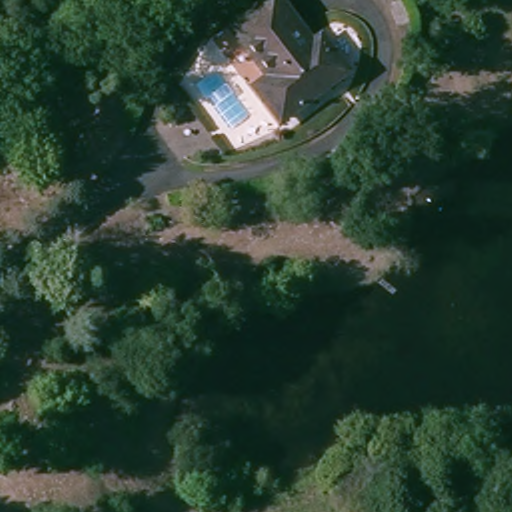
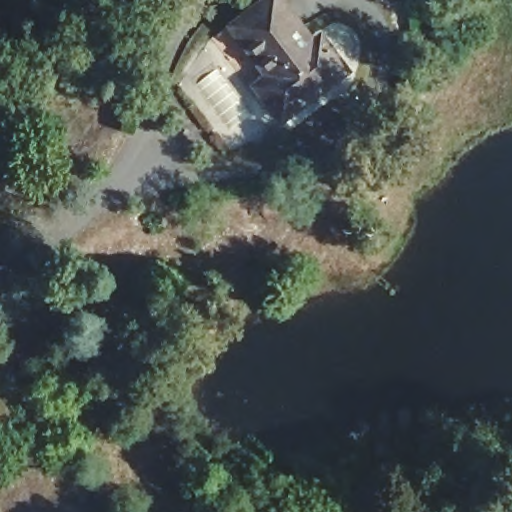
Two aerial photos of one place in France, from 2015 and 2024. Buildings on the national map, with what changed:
unchanged [(272,79),(235,32),(272,0),(277,0),(314,47),(321,41),(346,72),(285,121),(267,99),(260,89),(272,79)]

